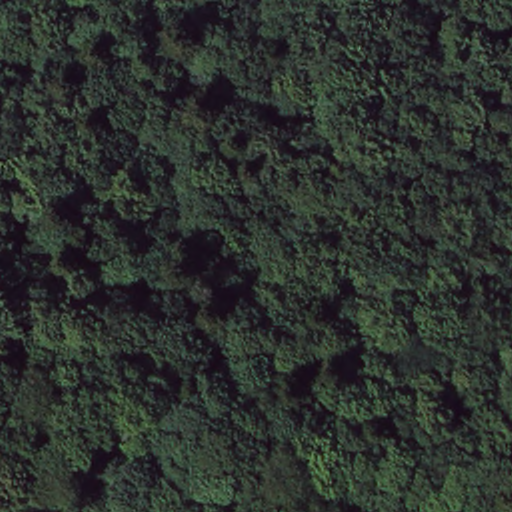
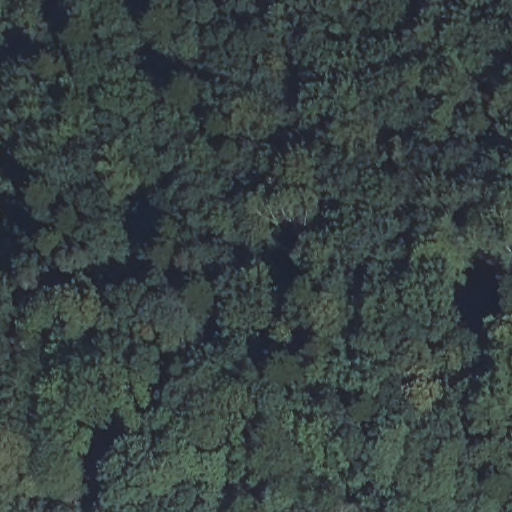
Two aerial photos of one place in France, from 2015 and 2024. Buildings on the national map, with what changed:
[]

